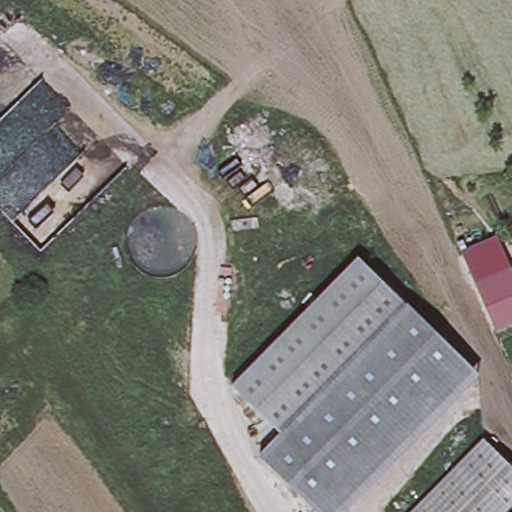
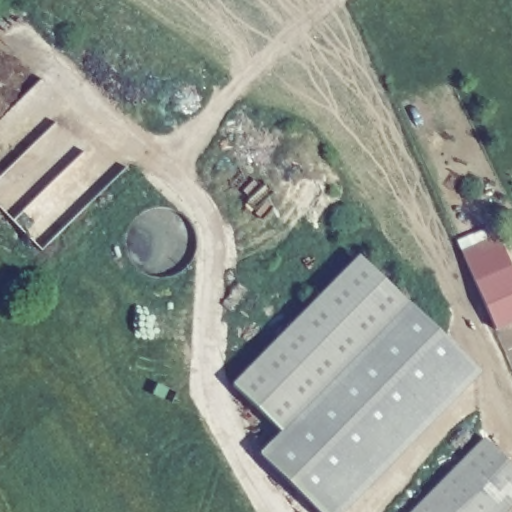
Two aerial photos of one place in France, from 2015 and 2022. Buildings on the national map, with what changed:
unchanged [(493,329),(473,283),(505,269),(512,285),(512,320),(493,329)]
unchanged [(374,270),(422,318),(320,421),(296,445),(248,397),(286,359),(374,270)]
unchanged [(320,421),(422,318),(478,373),(360,495),(343,512),(320,512),(275,467),(296,445),(320,421)]
unchanged [(512,470),(512,508),(508,512),(414,512),(484,442),(512,470)]

